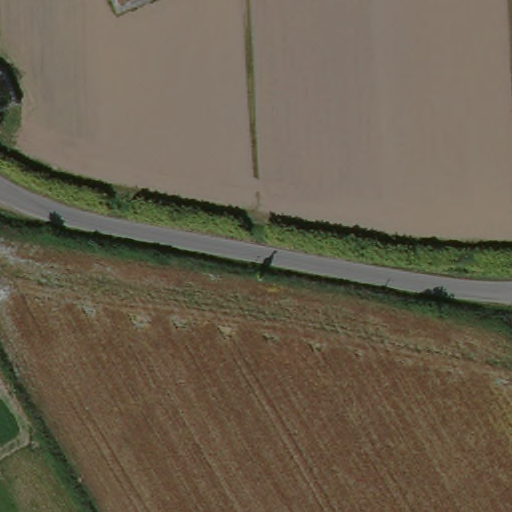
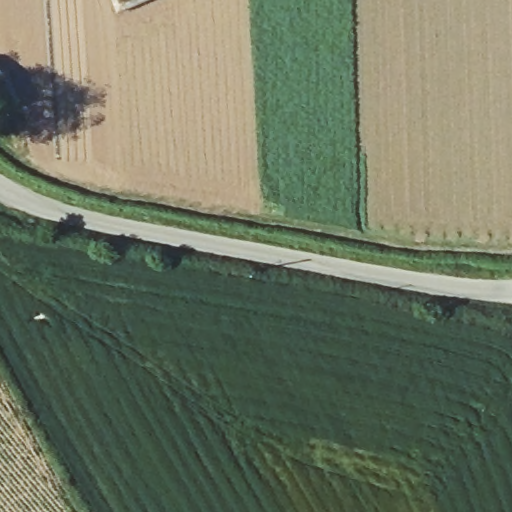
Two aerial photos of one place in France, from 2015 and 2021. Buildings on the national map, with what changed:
unchanged [(113,0),(147,0),(118,12),(113,0)]
unchanged [(0,73),(3,76),(16,102),(0,109),(0,73)]

